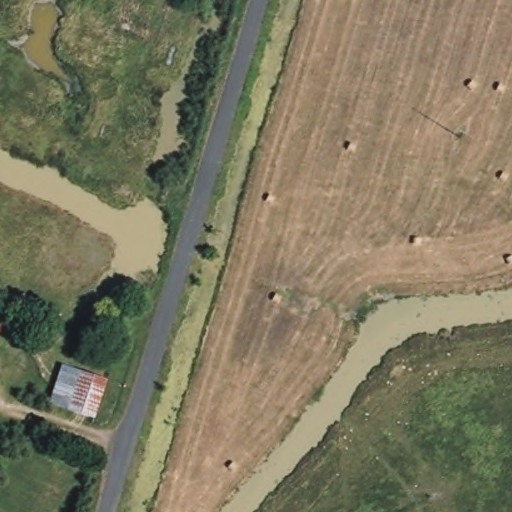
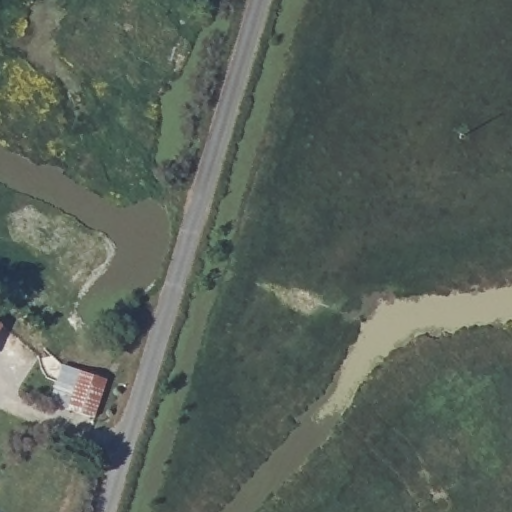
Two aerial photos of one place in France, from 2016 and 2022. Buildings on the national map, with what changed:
unchanged [(0,340),(0,330),(5,334),(0,340)]
unchanged [(68,415),(79,374),(100,379),(106,379),(96,422),(84,419),(68,415)]

